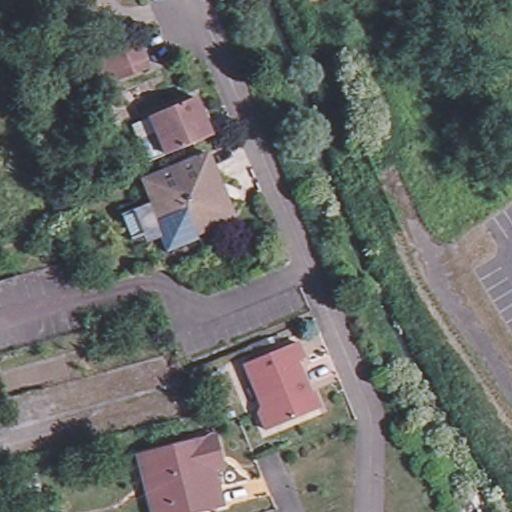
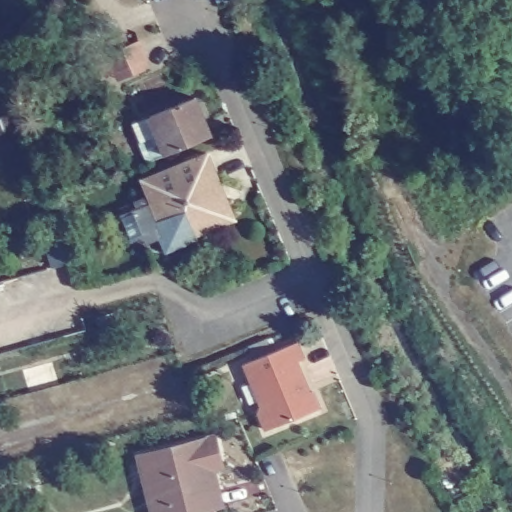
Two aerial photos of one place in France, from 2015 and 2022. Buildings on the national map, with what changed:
unchanged [(117,80),(114,72),(113,71),(103,75),(97,60),(98,60),(107,56),(107,54),(97,58),(94,48),(114,40),(124,36),(127,45),(139,41),(146,59),(149,67),(117,80)]
unchanged [(140,149),(141,146),(157,139),(150,121),(195,102),(207,131),(211,141),(207,143),(166,160),(147,168),(140,149)]
unchanged [(207,154),(234,218),(196,234),(197,239),(166,252),(160,237),(151,241),(137,209),(152,203),(142,180),(207,154)]
unchanged [(320,408),(266,430),(259,412),(261,405),(244,364),(297,342),(303,359),(296,362),(309,393),(312,391),(320,408)]
unchanged [(144,480),(137,455),(147,452),(216,435),(221,456),(224,467),(214,469),(223,506),(200,512),(152,512),(144,480)]

